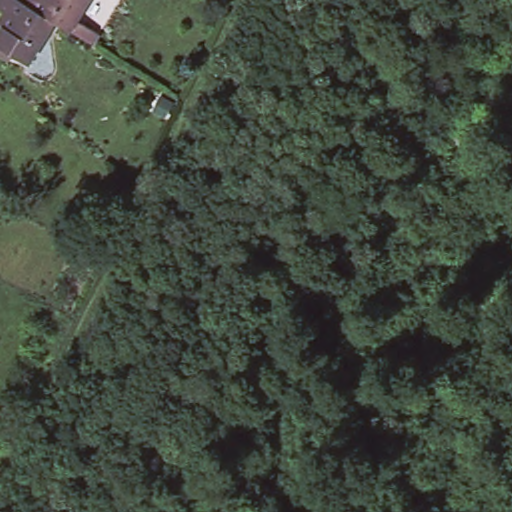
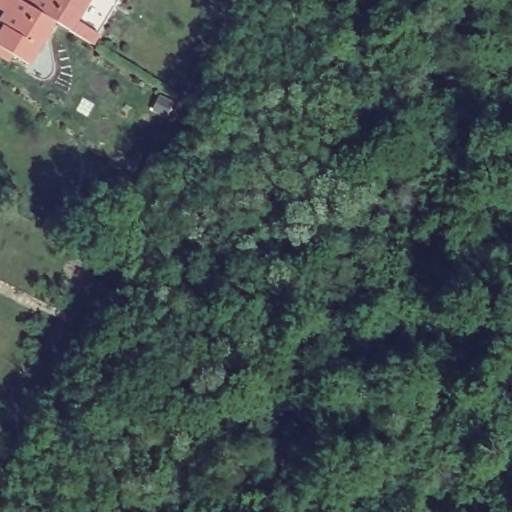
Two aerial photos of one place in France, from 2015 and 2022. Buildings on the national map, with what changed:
unchanged [(0,44),(0,31),(10,15),(0,9),(0,0),(29,0),(35,3),(37,0),(95,0),(76,32),(60,23),(33,64),(0,44)]

